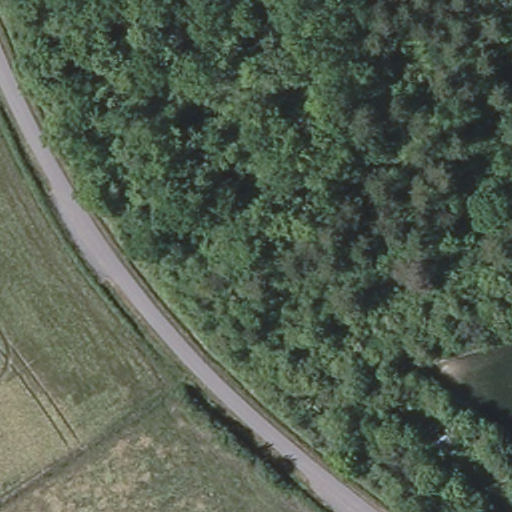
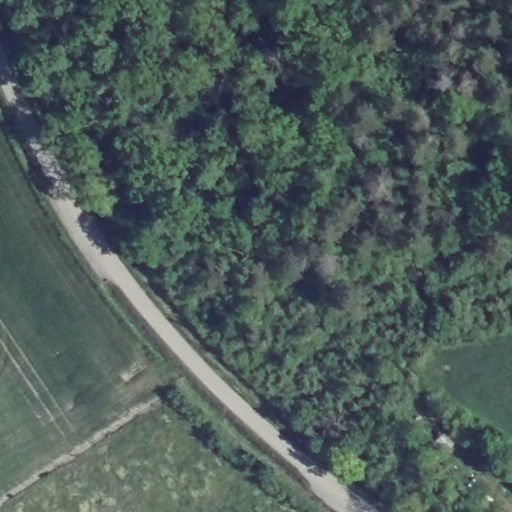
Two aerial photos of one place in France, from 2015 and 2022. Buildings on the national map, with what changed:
unchanged [(453,438),(444,453),(429,442),(437,424),(453,438)]

